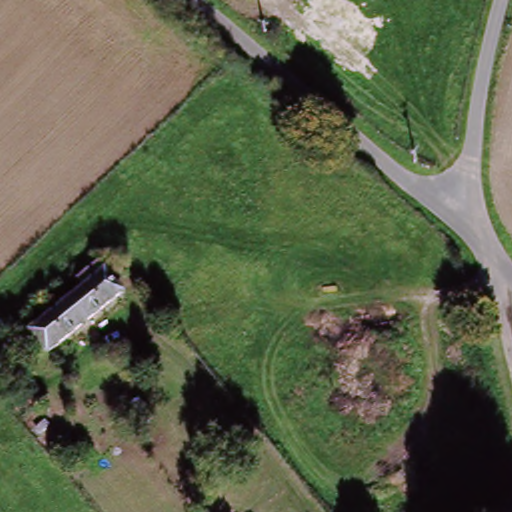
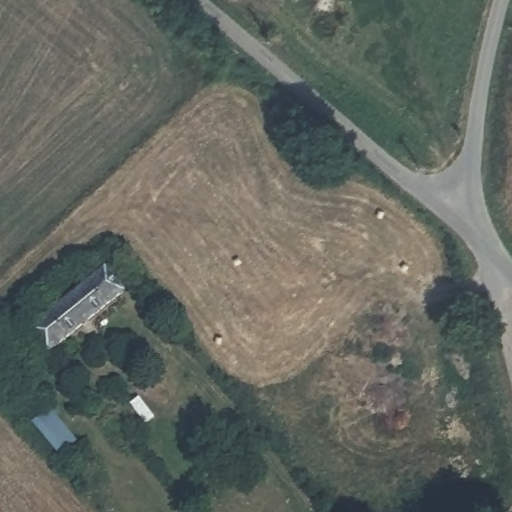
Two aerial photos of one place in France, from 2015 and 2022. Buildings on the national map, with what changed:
unchanged [(129,296),(57,360),(40,341),(112,277),(129,296)]

